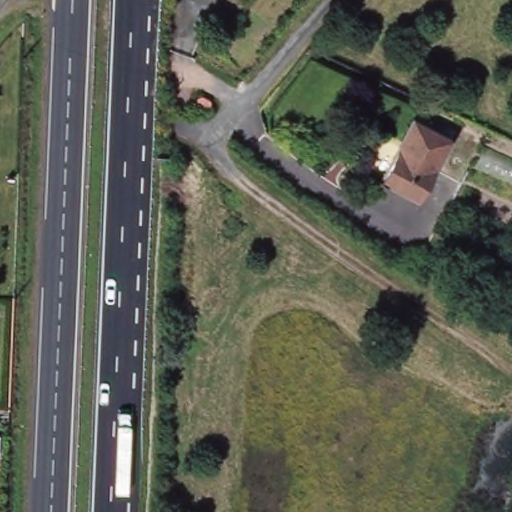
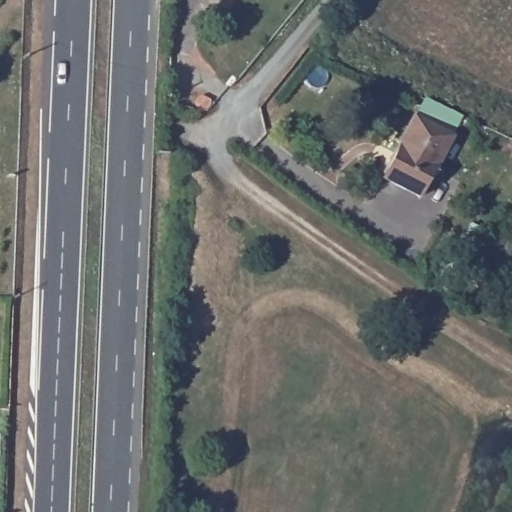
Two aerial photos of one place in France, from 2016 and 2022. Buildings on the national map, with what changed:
unchanged [(423,199),(383,183),(408,118),(447,135),(423,199)]

